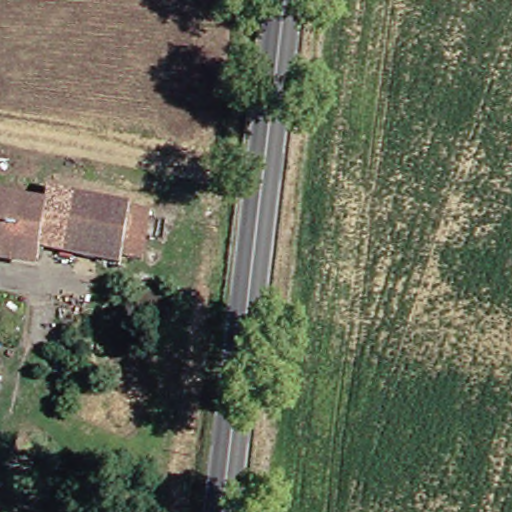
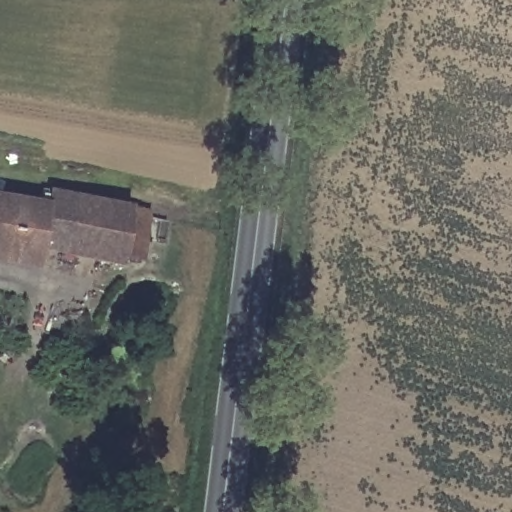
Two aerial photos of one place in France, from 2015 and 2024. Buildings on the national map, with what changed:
unchanged [(56,252),(36,248),(39,232),(44,204),(46,190),(68,194),(56,252)]
unchanged [(134,261),(119,258),(117,265),(56,252),(68,194),(145,210),(134,261)]
unchanged [(33,263),(0,257),(0,196),(44,204),(39,232),(36,248),(33,263)]

